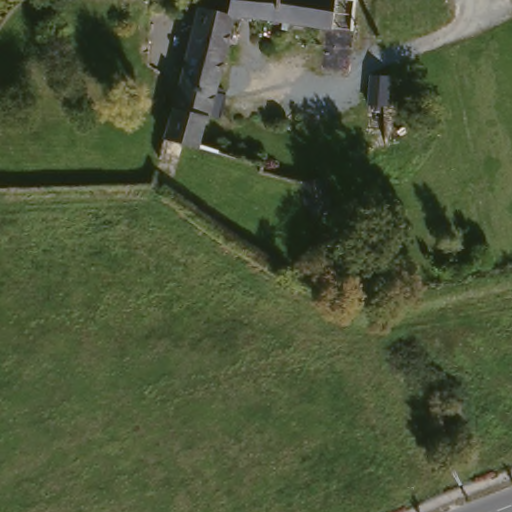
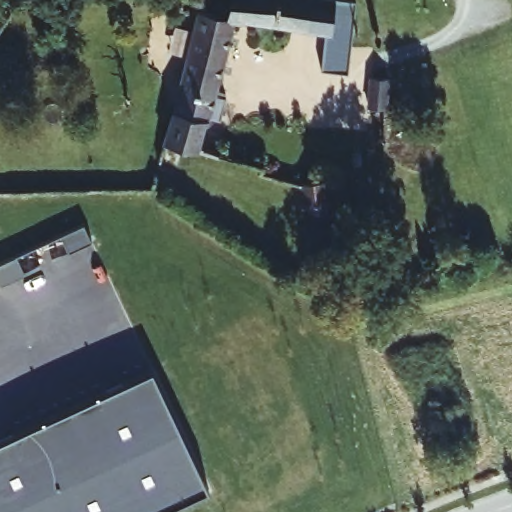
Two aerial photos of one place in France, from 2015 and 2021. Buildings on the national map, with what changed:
unchanged [(351,29),(234,14),(210,102),(207,104),(197,142),(185,139),(165,133),(200,10),(226,12),(228,0),(357,0),(351,29)]
unchanged [(387,81),(385,113),(370,112),(372,81),(387,81)]
unchanged [(325,209),(326,212),(325,215),(323,216),(319,217),(316,216),(313,209),(306,210),(305,208),(304,202),(300,186),(325,179),(332,204),(324,207),(325,209)]
new [(84,224),(92,241),(69,252),(60,234),(84,224)]
new [(209,488),(159,512),(0,512),(0,440),(152,368),(209,488)]

